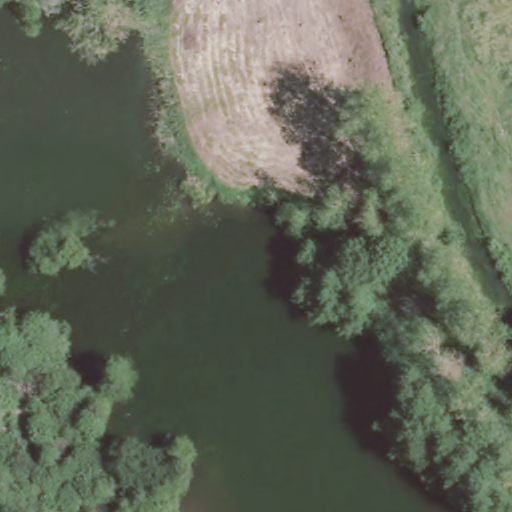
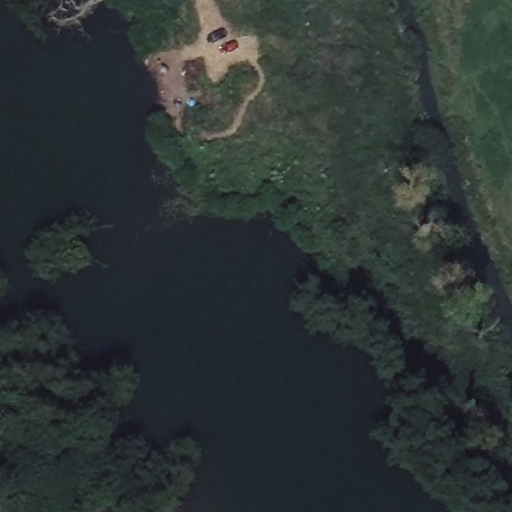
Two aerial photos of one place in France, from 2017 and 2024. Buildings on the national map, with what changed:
unchanged [(178,201),(172,191),(194,182),(203,190),(178,201)]

